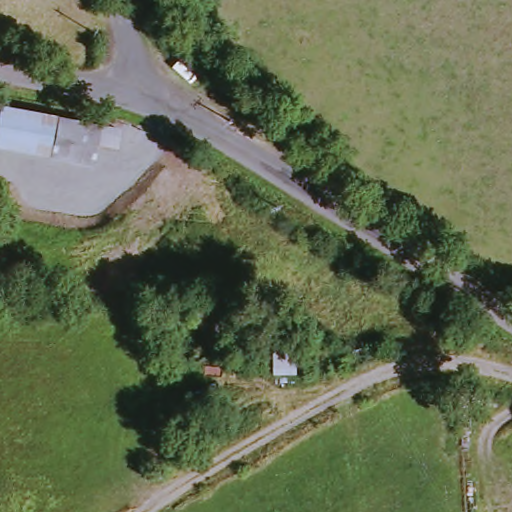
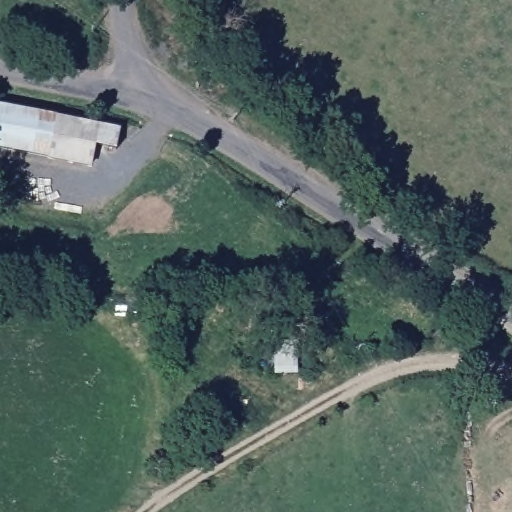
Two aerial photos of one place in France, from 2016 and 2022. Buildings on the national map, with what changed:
unchanged [(125,130),(122,150),(100,145),(95,169),(0,151),(0,108),(103,125),(125,130)]

